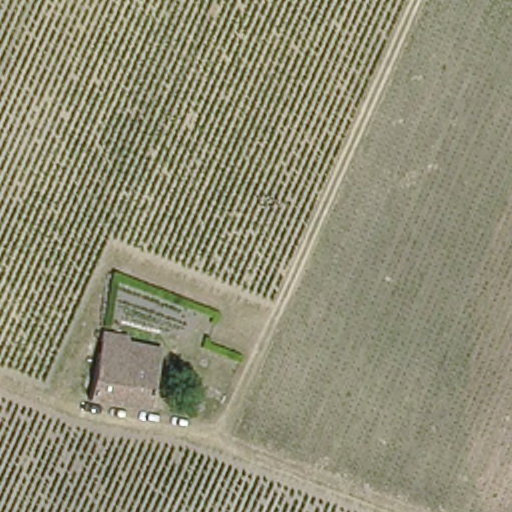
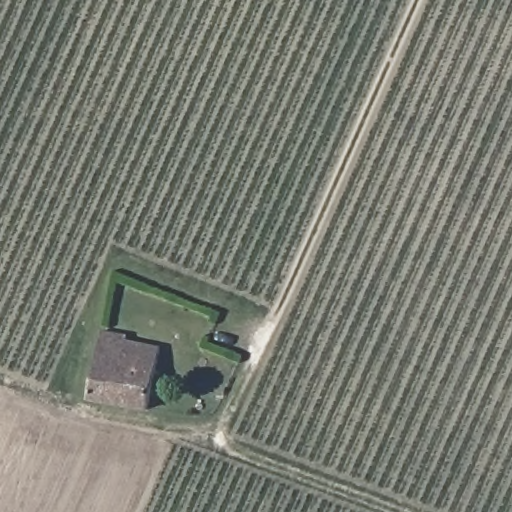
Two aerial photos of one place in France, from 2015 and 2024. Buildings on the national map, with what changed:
unchanged [(110,330),(129,332),(127,341),(160,347),(148,410),(89,401),(104,328),(110,330)]

